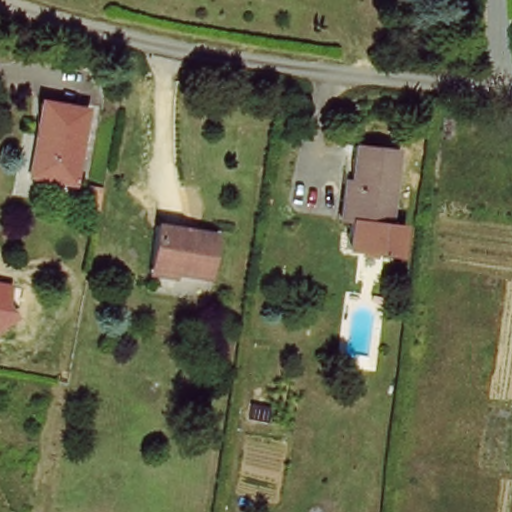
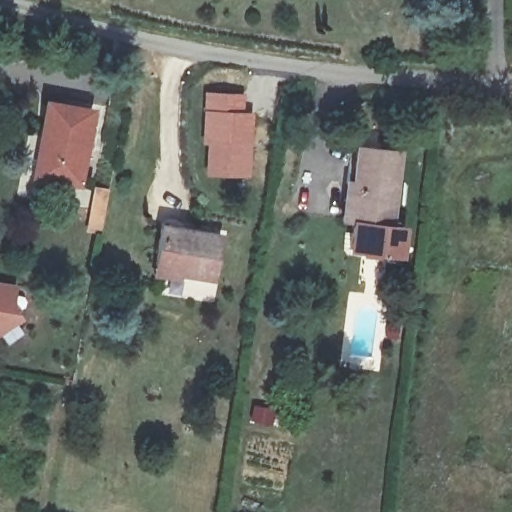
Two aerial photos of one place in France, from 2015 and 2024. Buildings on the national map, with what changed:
new [(203,90),(247,93),(246,110),(256,111),(252,178),(202,175),(204,144),(199,144),(203,90)]
unchanged [(91,107),(81,184),(34,177),(45,99),(91,107)]
unchanged [(411,157),(400,241),(339,233),(350,150),(411,157)]
new [(96,186),(109,188),(105,210),(101,232),(88,229),(92,208),(96,186)]
unchanged [(213,231),(206,280),(173,275),(174,268),(149,262),(153,223),(213,231)]
unchanged [(16,283),(15,306),(25,315),(7,329),(0,336),(0,280),(16,283)]

